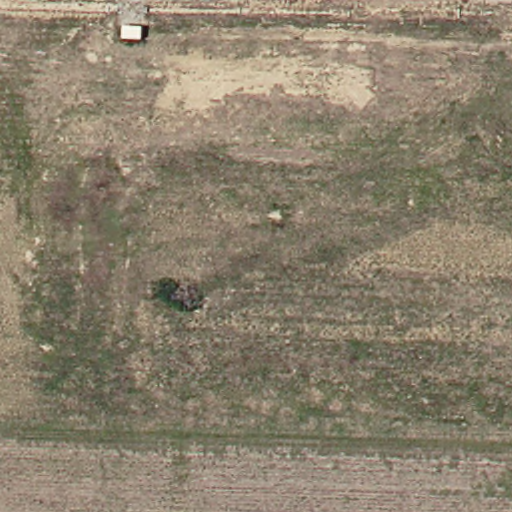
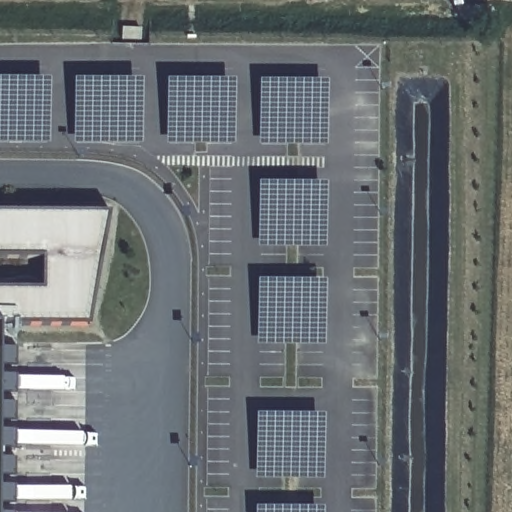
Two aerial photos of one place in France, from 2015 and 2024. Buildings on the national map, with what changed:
new [(49,144),(0,144),(0,80),(49,80),(49,144)]
new [(74,81),(142,81),(141,145),(74,145),(74,81)]
new [(167,81),(234,82),(234,146),(167,146),(167,81)]
new [(258,83),(326,82),(327,146),(259,147),(258,83)]
new [(257,185),(325,184),(326,248),(258,249),(257,185)]
new [(88,327),(0,327),(0,289),(42,289),(42,258),(0,257),(0,212),(110,212),(88,327)]
new [(258,347),(257,283),(324,282),(325,346),(258,347)]
new [(257,480),(256,416),(323,415),(323,480),(257,480)]
new [(322,508),(322,512),(254,512),(254,508),(322,508)]

